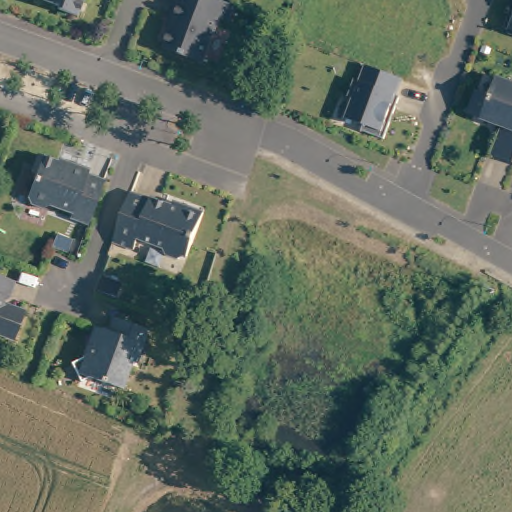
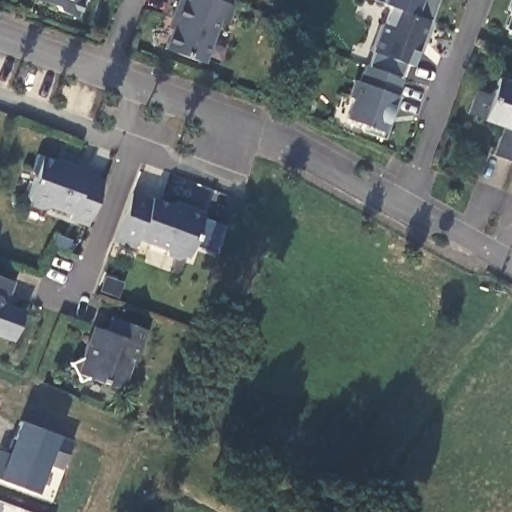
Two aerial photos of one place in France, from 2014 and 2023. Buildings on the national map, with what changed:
unchanged [(79,1),(74,15),(56,10),(53,5),(39,0),(80,0),(79,1)]
unchanged [(233,9),(227,26),(219,24),(204,66),(160,50),(177,0),(210,0),(233,9)]
new [(372,51),(382,22),(387,5),(381,4),(372,0),(439,0),(420,52),(419,51),(412,65),(405,64),(400,78),(367,67),(372,51)]
unchanged [(512,10),(512,15),(510,14),(512,10)]
unchanged [(512,20),(512,34),(507,32),(512,20)]
unchanged [(512,34),(512,38),(510,37),(512,34)]
unchanged [(362,130),(365,124),(347,117),(363,65),(400,78),(395,95),(399,97),(388,130),(385,137),(362,130)]
unchanged [(505,130),(470,117),(478,94),(492,99),(500,81),(512,86),(512,165),(495,159),(505,130)]
unchanged [(66,217),(67,211),(45,204),(40,208),(25,201),(24,197),(30,176),(29,172),(35,155),(62,165),(64,161),(84,167),(82,170),(101,176),(85,222),(66,217)]
unchanged [(146,198),(147,195),(175,205),(179,201),(200,209),(186,254),(184,251),(179,255),(167,251),(160,243),(136,235),(131,248),(110,240),(128,191),(146,198)]
unchanged [(22,315),(14,339),(0,334),(0,274),(15,280),(5,305),(8,310),(22,315)]
unchanged [(144,325),(138,339),(141,340),(135,355),(130,360),(121,382),(85,370),(72,375),(66,359),(77,355),(85,334),(89,335),(94,322),(105,325),(110,312),(144,325)]
new [(8,452),(20,420),(72,439),(61,467),(46,461),(35,491),(0,479),(0,450),(8,452)]

